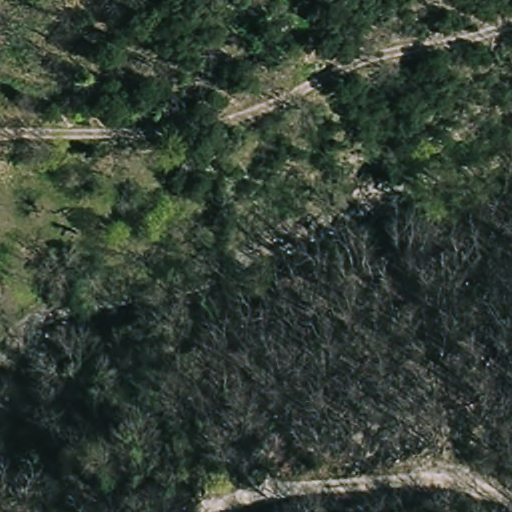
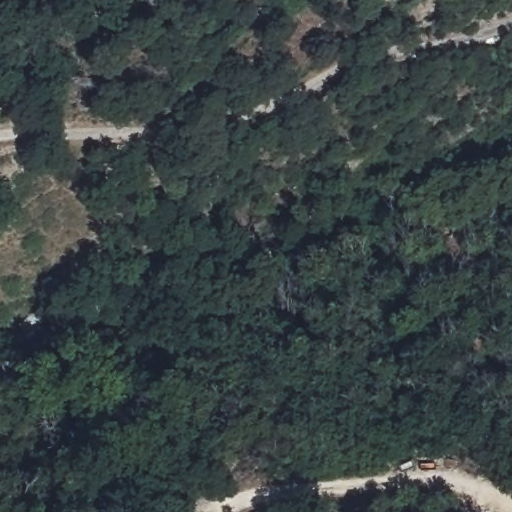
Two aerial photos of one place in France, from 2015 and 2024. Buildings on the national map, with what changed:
[]

